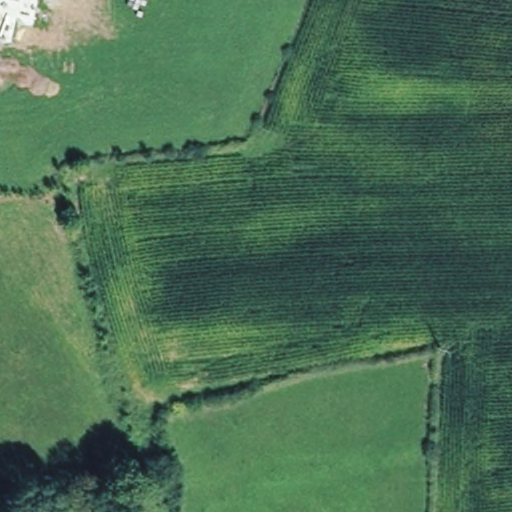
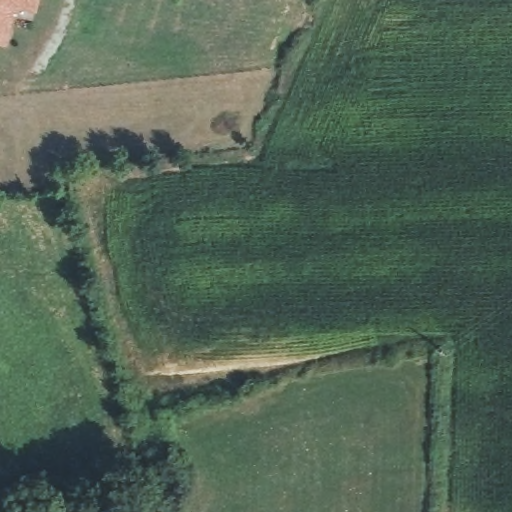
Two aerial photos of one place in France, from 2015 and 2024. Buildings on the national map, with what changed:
new [(17,6),(7,45),(0,43),(0,0),(37,0),(35,9),(17,6)]

